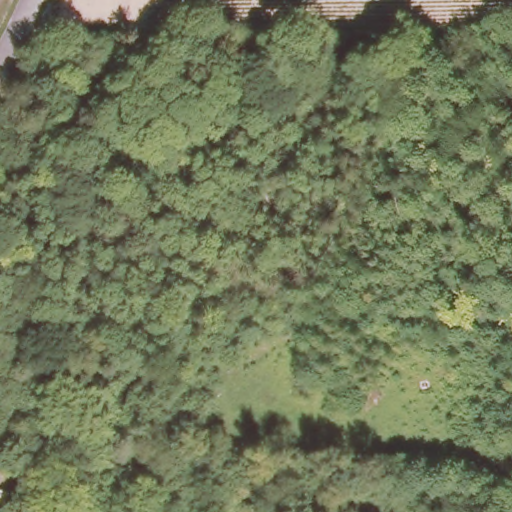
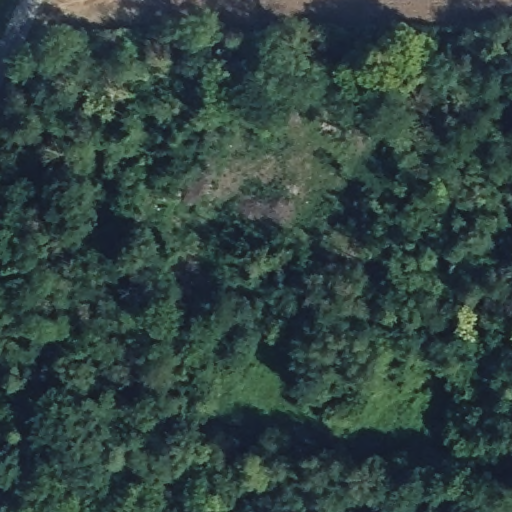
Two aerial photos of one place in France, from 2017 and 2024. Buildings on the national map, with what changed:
unchanged [(8,481),(1,500),(0,500),(0,479),(8,481)]

